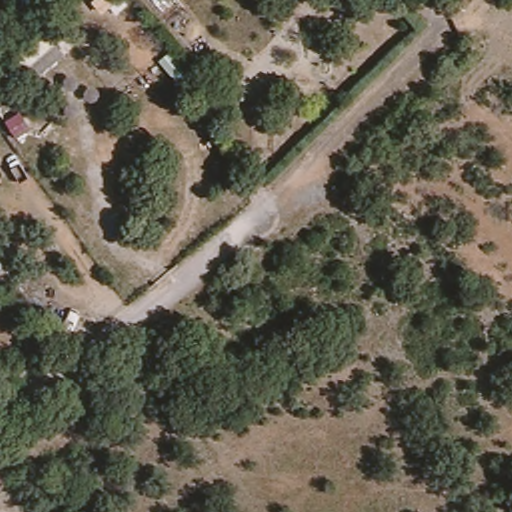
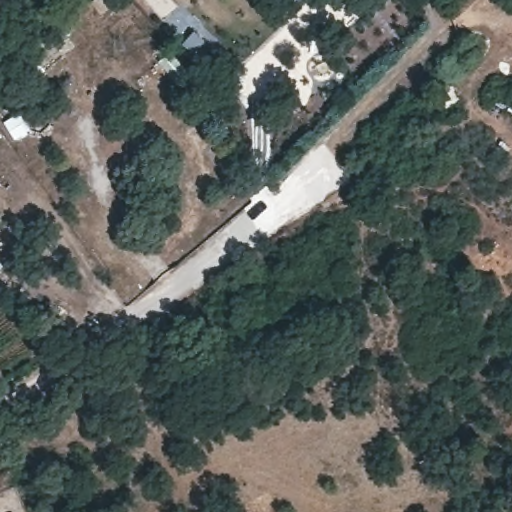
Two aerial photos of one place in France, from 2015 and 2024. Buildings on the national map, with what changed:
unchanged [(279,1),(278,0),(281,0),(279,1)]

